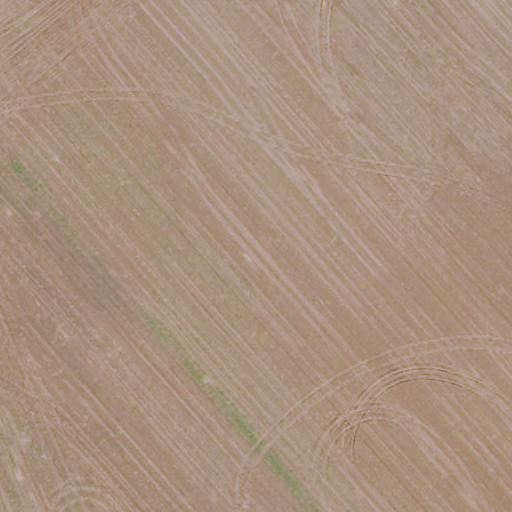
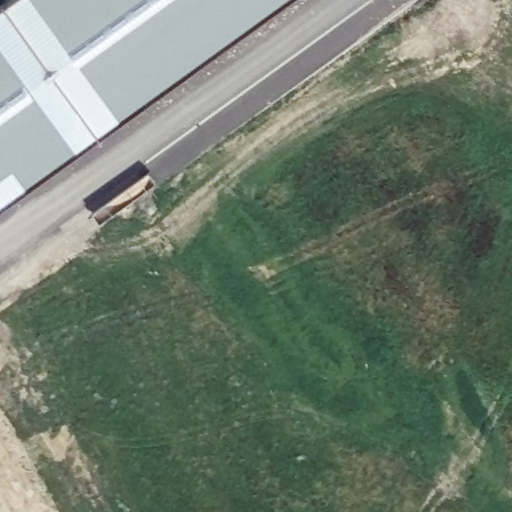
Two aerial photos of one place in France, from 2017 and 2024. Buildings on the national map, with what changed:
new [(285,0),(0,205),(0,5),(7,0),(285,0)]

